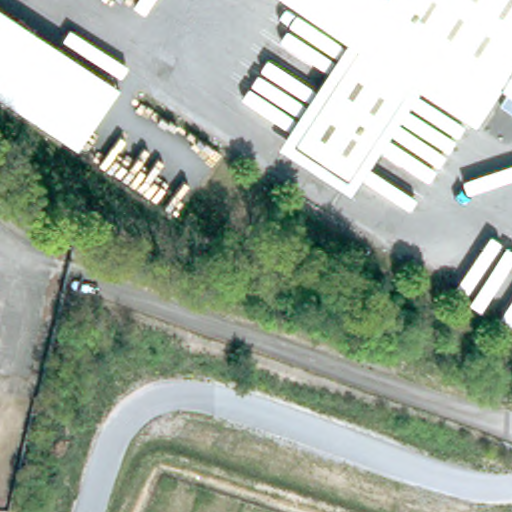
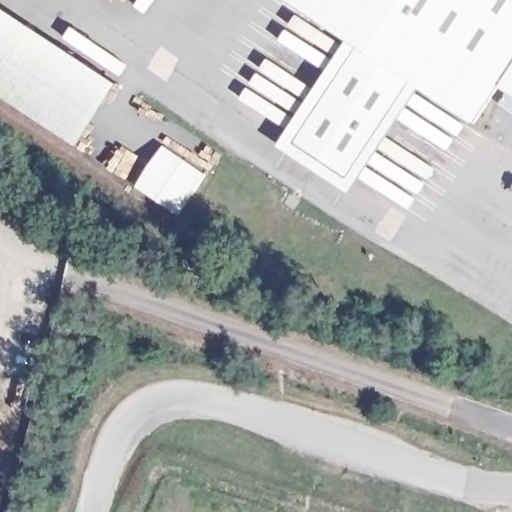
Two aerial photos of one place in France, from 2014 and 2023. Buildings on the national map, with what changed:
unchanged [(494,86),(472,118),(408,76),(345,171),(294,137),(357,43),(293,0),(512,0),(512,97),(494,86)]
unchanged [(79,146),(0,95),(0,5),(120,83),(79,146)]
new [(206,173),(176,217),(134,187),(163,144),(206,173)]

